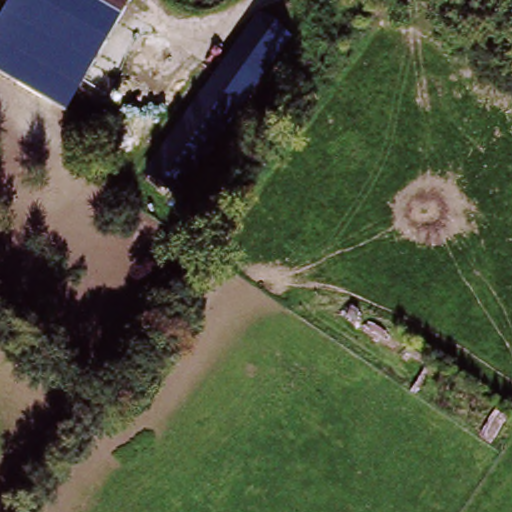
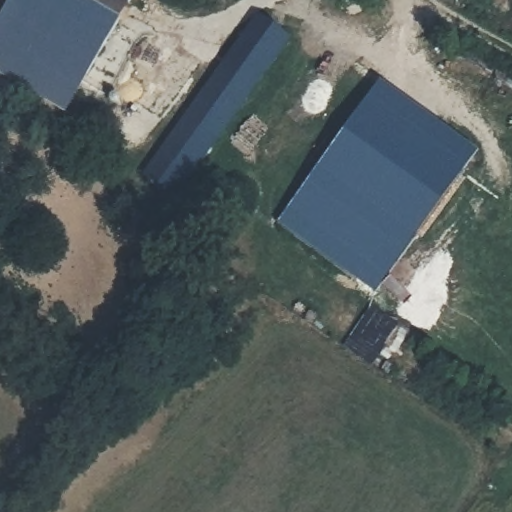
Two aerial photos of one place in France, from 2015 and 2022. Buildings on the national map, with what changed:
unchanged [(56,110),(0,70),(0,16),(11,0),(134,0),(56,110)]
unchanged [(264,27),(292,48),(181,203),(152,182),(264,27)]
new [(481,154),(374,295),(277,222),(379,81),(481,154)]
new [(374,303),(375,309),(399,325),(373,365),(342,345),(364,313),(351,308),(355,298),(374,303)]

